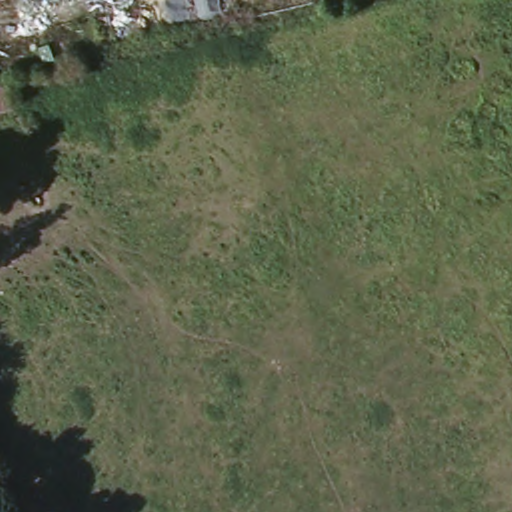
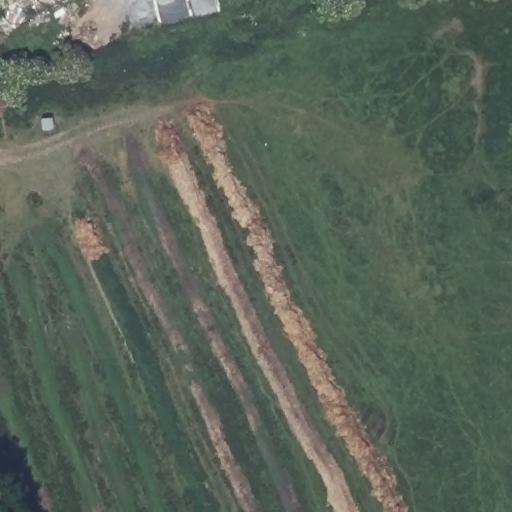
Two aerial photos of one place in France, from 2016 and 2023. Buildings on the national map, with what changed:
[]

